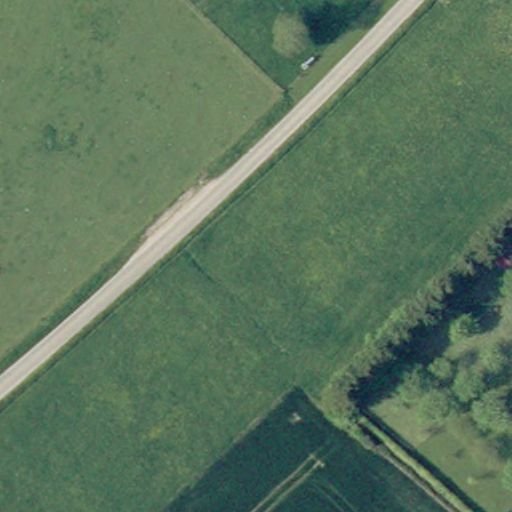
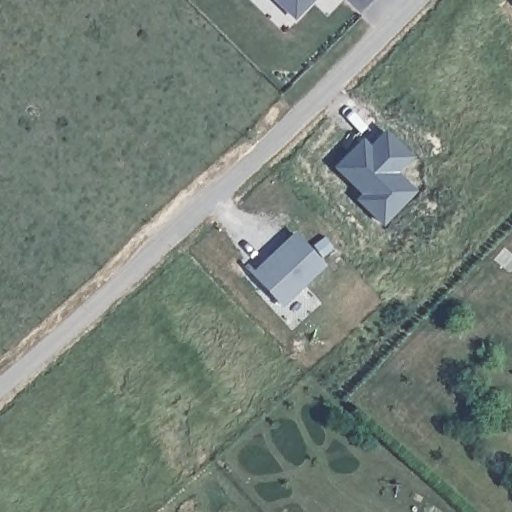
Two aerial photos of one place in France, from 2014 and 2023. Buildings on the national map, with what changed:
new [(294,19),(274,0),(313,0),(294,19)]
new [(362,139),(366,144),(370,147),(385,131),(409,153),(394,169),(414,190),(383,222),(357,198),(362,192),(336,166),(354,147),(362,139)]
new [(326,265),(281,307),(248,271),(293,229),(326,265)]
unchanged [(512,265),(507,271),(497,262),(507,250),(512,255),(512,265)]

